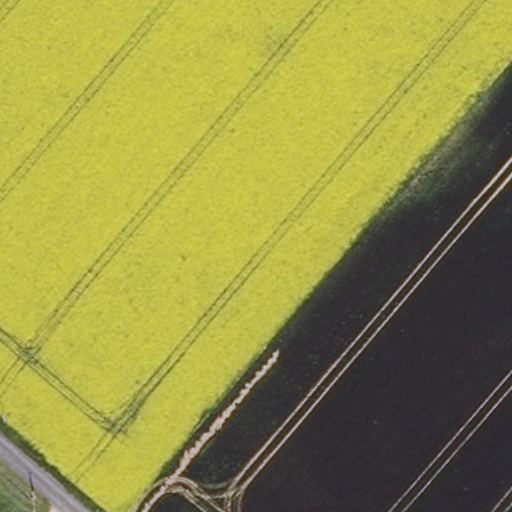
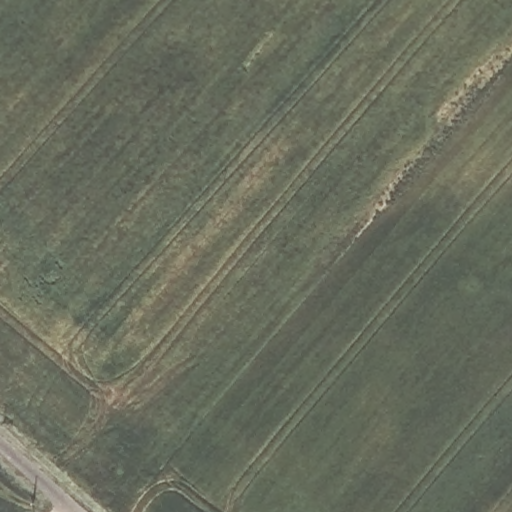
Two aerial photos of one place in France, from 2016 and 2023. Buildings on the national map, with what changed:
[]

